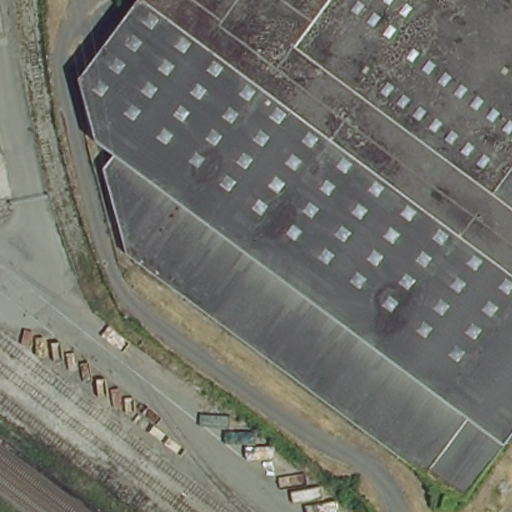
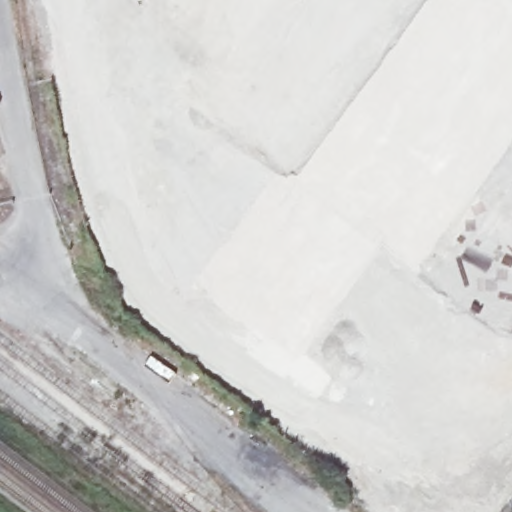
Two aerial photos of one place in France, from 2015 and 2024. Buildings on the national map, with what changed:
demolished [(475,424),(432,480),(140,265),(115,186),(128,169),(111,156),(93,90),(159,0),(512,0),(512,449),(511,450),(475,424)]
demolished [(475,424),(511,450),(469,507),(432,480),(475,424)]

